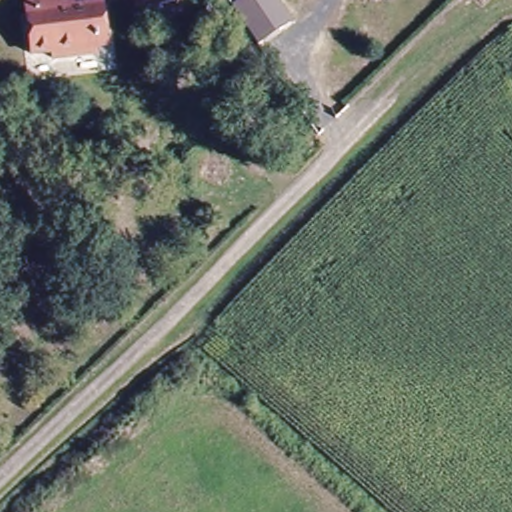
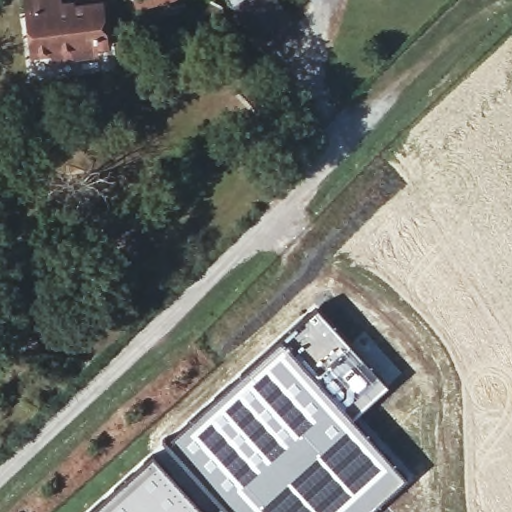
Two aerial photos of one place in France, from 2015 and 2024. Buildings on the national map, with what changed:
unchanged [(97,1),(102,45),(93,45),(91,56),(49,60),(49,51),(30,52),(24,0),(53,0),(53,5),(97,1)]
unchanged [(258,45),(229,0),(279,0),(294,22),(258,45)]
new [(232,393),(270,356),(289,334),(318,309),(388,386),(352,419),(404,479),(367,512),(239,512),(231,503),(175,438),(232,393)]
new [(152,459),(200,512),(92,512),(152,459)]

